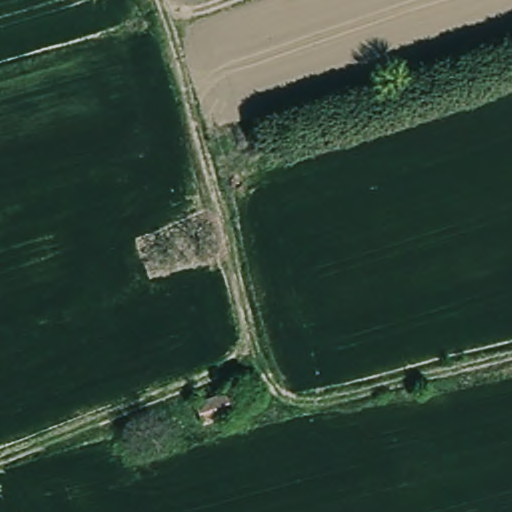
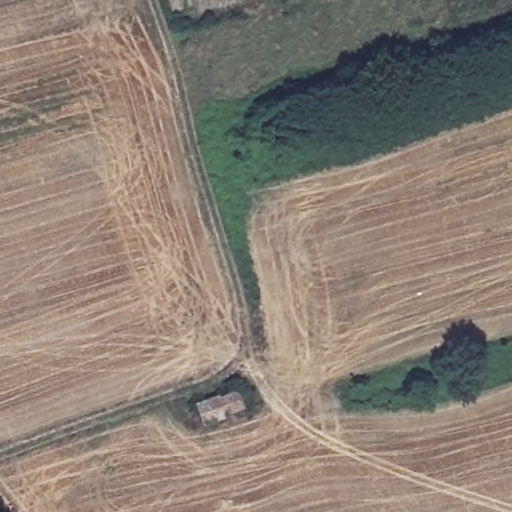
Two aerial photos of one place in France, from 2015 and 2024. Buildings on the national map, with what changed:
unchanged [(194,404),(237,390),(243,408),(223,415),(224,419),(201,426),(194,404)]

